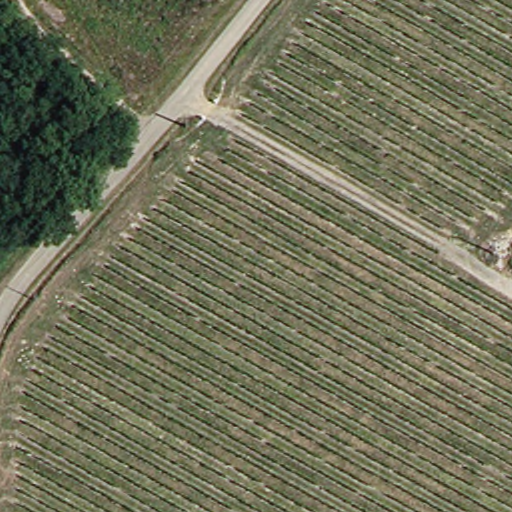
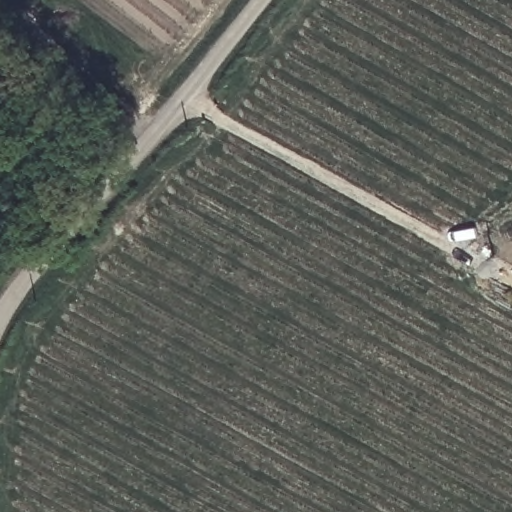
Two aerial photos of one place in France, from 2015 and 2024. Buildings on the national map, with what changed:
[]

